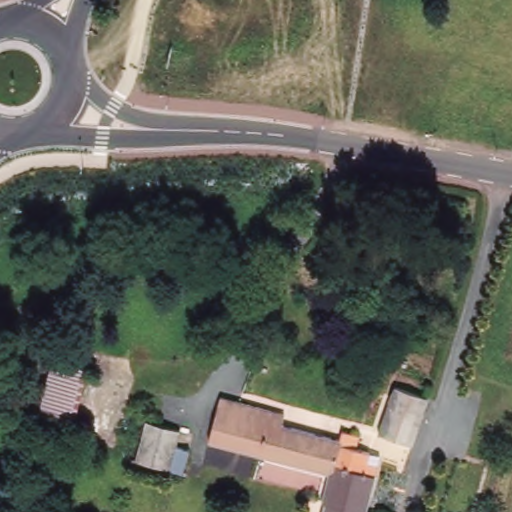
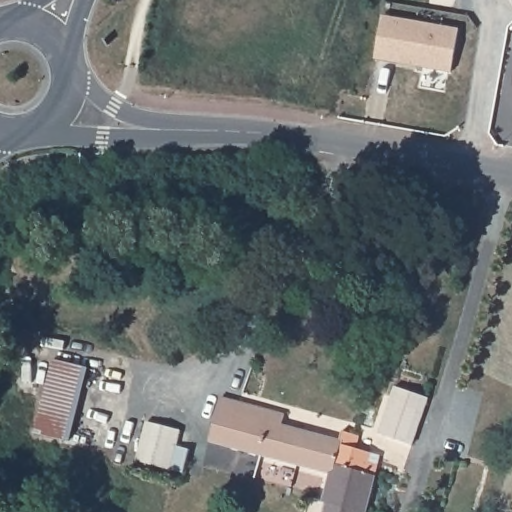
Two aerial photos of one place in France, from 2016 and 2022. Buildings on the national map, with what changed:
new [(384,17),(461,31),(458,48),(447,51),(457,49),(453,74),(377,60),(384,17)]
unchanged [(80,368),(85,370),(66,444),(60,443),(31,434),(49,361),(80,368)]
unchanged [(425,400),(408,447),(374,435),(390,387),(425,400)]
unchanged [(217,399),(282,416),(278,426),(335,442),(337,433),(356,438),(352,451),(376,458),(364,512),(350,512),(323,504),(318,503),(326,475),(257,457),(205,443),(217,399)]
unchanged [(132,463),(142,423),(174,431),(189,436),(186,451),(181,474),(132,463)]
unchanged [(350,512),(321,512),(323,504),(350,512)]

